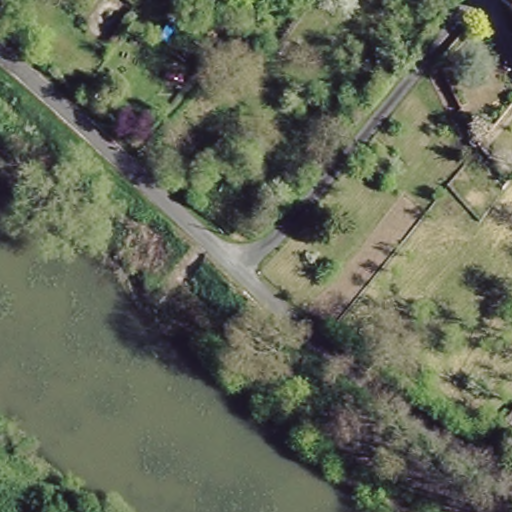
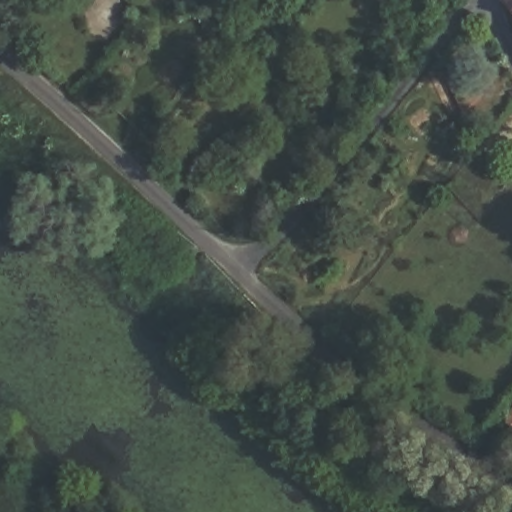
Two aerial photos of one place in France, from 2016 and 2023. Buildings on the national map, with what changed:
unchanged [(497,0),(512,0),(512,17),(497,0)]

